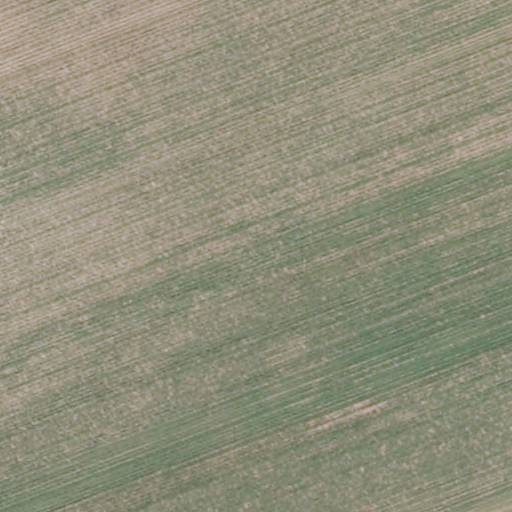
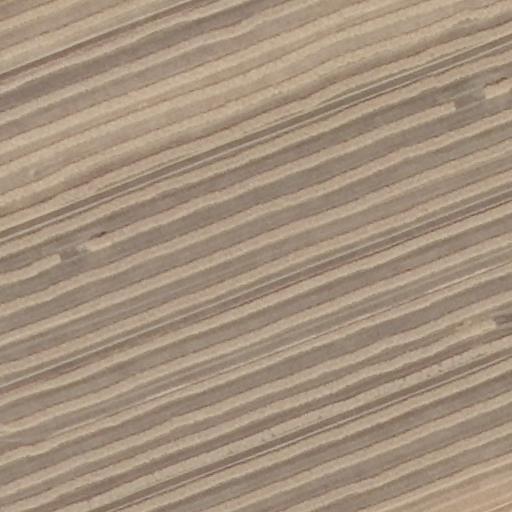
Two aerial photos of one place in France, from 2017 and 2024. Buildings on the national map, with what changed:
[]

